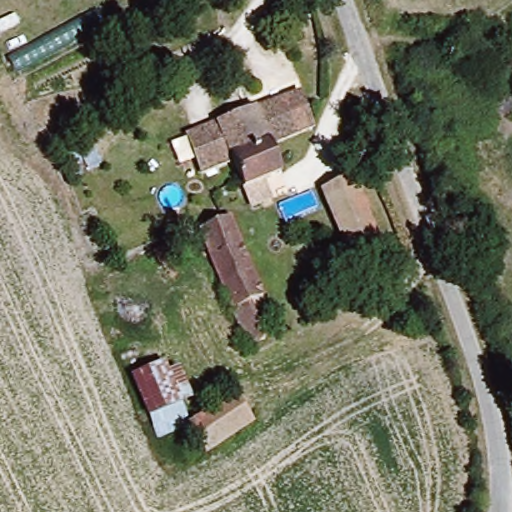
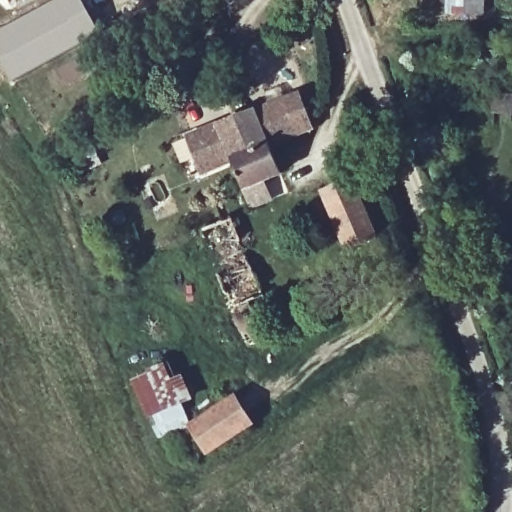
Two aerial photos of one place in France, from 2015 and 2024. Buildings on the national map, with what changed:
new [(82,0),(101,35),(11,83),(0,62),(0,29),(53,0),(82,0)]
unchanged [(207,167),(194,133),(301,90),(316,125),(273,142),(283,168),(250,182),(238,155),(207,167)]
unchanged [(345,246),(323,191),(350,180),(372,235),(345,246)]
unchanged [(266,293),(254,298),(270,338),(251,346),(203,229),(235,215),(266,293)]
unchanged [(172,243),(185,273),(158,284),(146,253),(172,243)]
unchanged [(160,437),(136,380),(160,368),(186,425),(160,437)]
unchanged [(238,396),(256,425),(212,452),(195,423),(238,396)]

